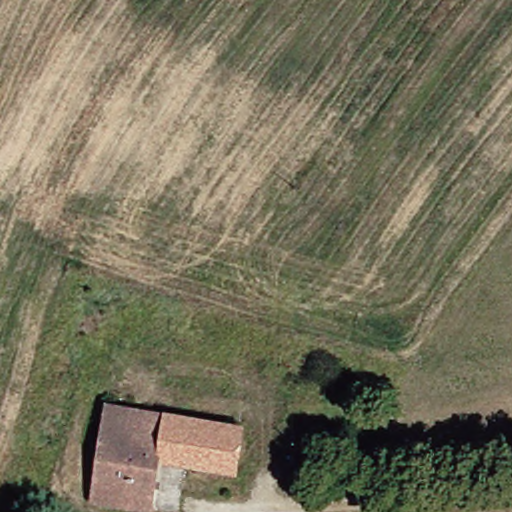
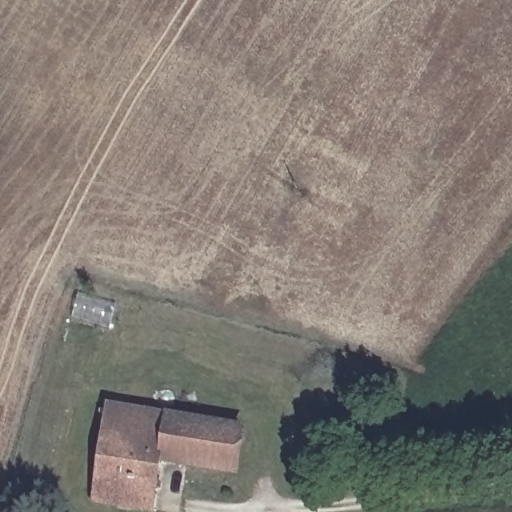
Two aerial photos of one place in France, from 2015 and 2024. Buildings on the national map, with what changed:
unchanged [(231,421),(224,468),(156,462),(149,512),(143,512),(88,508),(99,420),(100,411),(142,414),(187,418),(231,421)]

